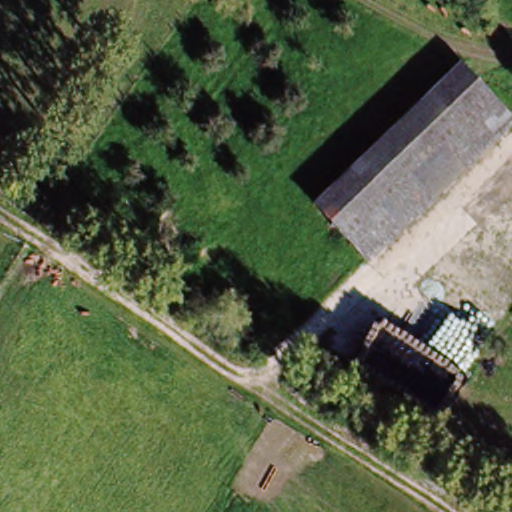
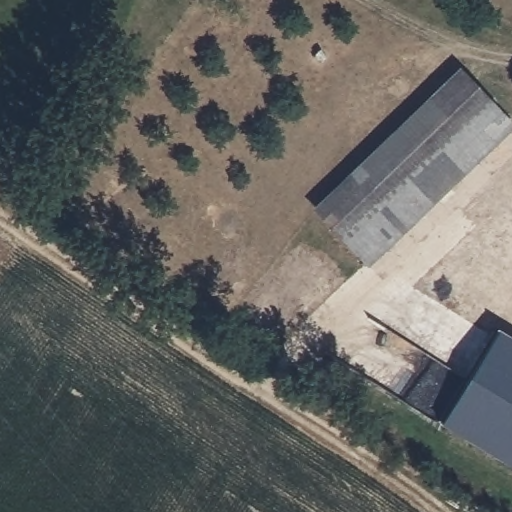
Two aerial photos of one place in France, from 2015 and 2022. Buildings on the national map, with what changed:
unchanged [(453,73),(508,126),(370,270),(315,217),(453,73)]
new [(498,320),(512,329),(512,473),(431,426),(498,320)]

